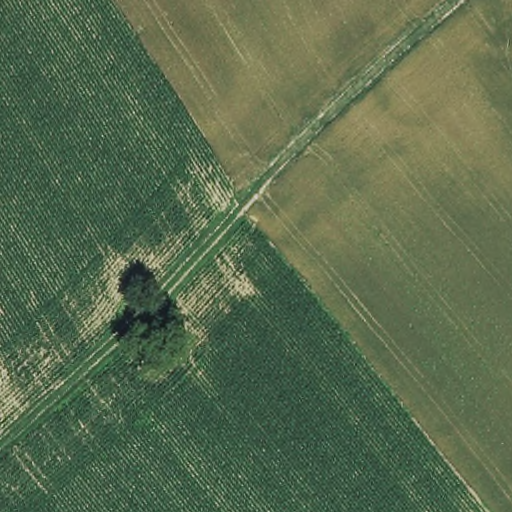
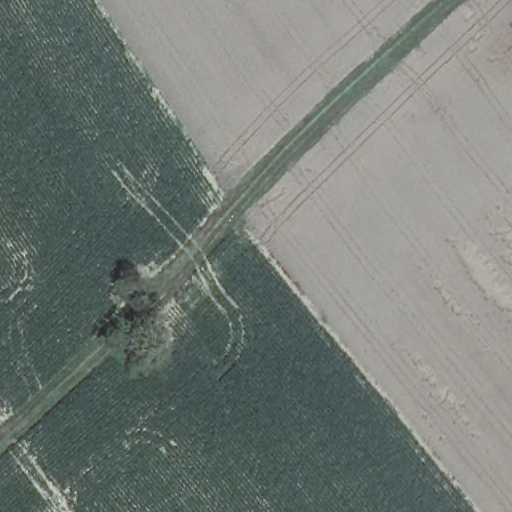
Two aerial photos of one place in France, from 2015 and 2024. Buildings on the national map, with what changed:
[]

